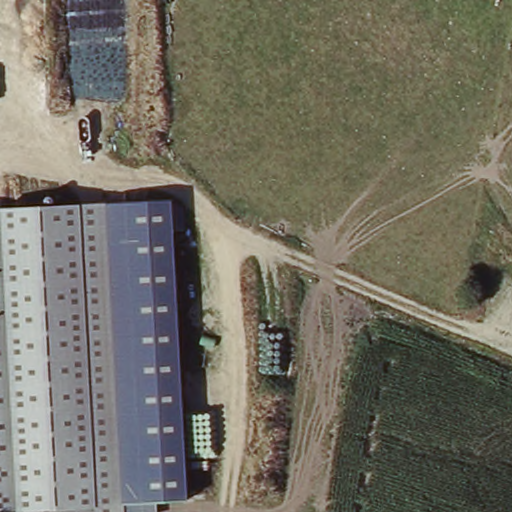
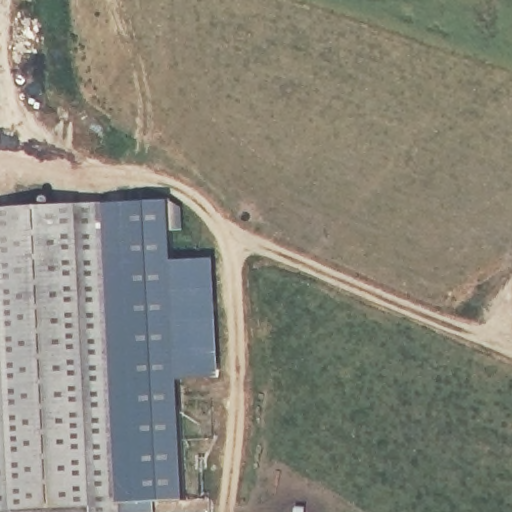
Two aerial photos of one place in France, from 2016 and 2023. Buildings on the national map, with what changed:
unchanged [(159,512),(124,512),(116,366),(108,211),(171,207),(188,498),(159,502),(159,512)]
unchanged [(124,512),(0,512),(0,216),(108,211),(124,512)]
new [(174,260),(214,258),(220,375),(181,378),(174,260)]

